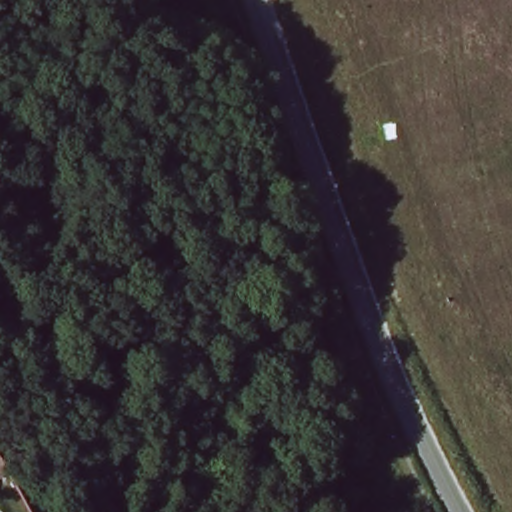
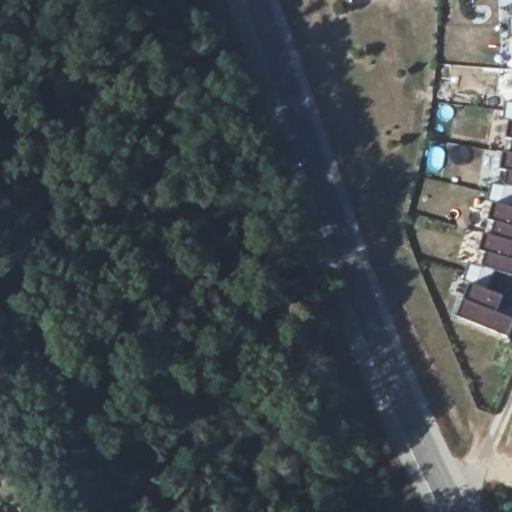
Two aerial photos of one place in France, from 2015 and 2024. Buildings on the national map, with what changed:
new [(511,19),(512,19),(512,43),(511,43),(511,19)]
new [(463,283),(469,264),(476,266),(493,205),(486,202),(492,182),(500,184),(509,121),(504,121),(506,102),(512,102),(512,275),(495,270),(488,291),(504,296),(501,304),(512,308),(512,325),(507,337),(458,317),(471,286),(463,283)]

